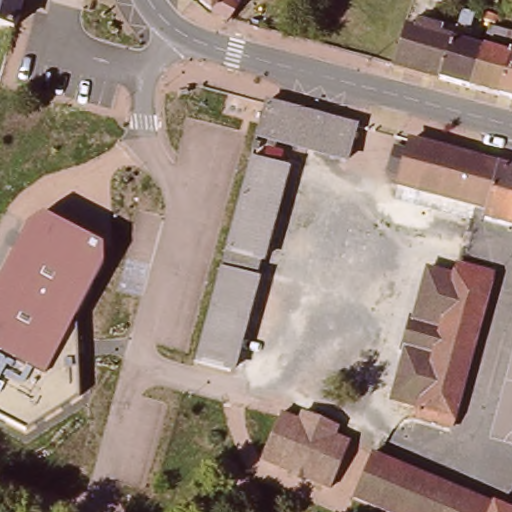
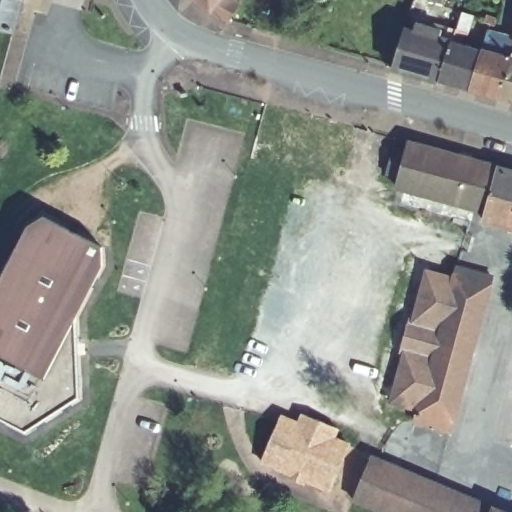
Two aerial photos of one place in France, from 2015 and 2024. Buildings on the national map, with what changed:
unchanged [(0,28),(0,0),(22,0),(14,32),(0,28)]
unchanged [(200,5),(195,0),(227,0),(220,12),(200,5)]
unchanged [(438,0),(440,0),(440,1),(438,0)]
unchanged [(410,27),(445,37),(447,33),(452,35),(449,46),(438,82),(392,69),(404,31),(409,32),(410,27)]
unchanged [(485,36),(490,37),(512,44),(512,53),(497,100),(468,91),(479,55),(485,36)]
unchanged [(479,55),(468,91),(438,82),(449,46),(479,55)]
unchanged [(512,104),(497,100),(512,53),(512,104)]
demolished [(268,107),(357,132),(347,165),(259,140),(268,107)]
unchanged [(512,228),(485,221),(488,212),(400,187),(402,177),(390,174),(395,151),(409,154),(412,142),(512,171),(512,228)]
demolished [(254,157),(290,168),(264,263),(229,252),(254,157)]
unchanged [(27,226),(43,216),(102,247),(102,265),(75,317),(78,398),(24,432),(0,419),(0,277),(27,226)]
unchanged [(415,418),(418,408),(392,401),(406,352),(400,350),(409,318),(415,320),(427,267),(453,275),(457,263),(492,275),(490,285),(462,384),(452,428),(415,418)]
demolished [(233,373),(197,363),(224,267),(260,278),(233,373)]
unchanged [(262,466),(280,420),(299,427),(302,420),(335,434),(332,442),(349,450),(331,495),(304,483),(296,480),(262,466)]
unchanged [(375,457),(506,512),(389,512),(359,499),(375,457)]

